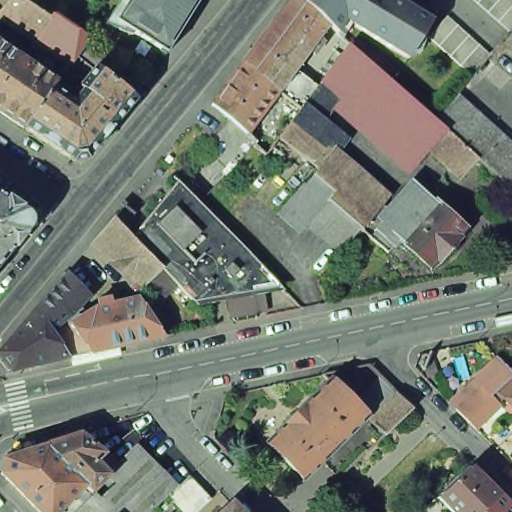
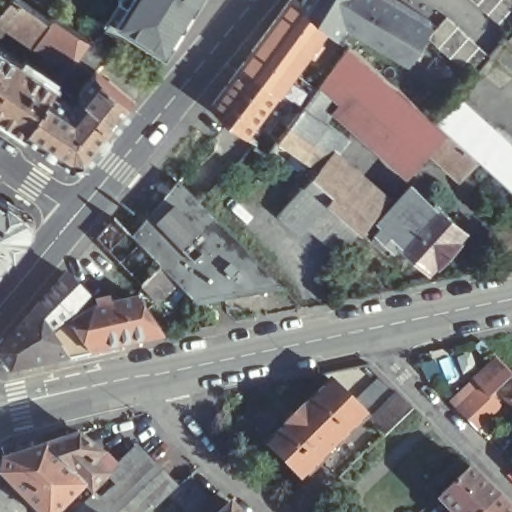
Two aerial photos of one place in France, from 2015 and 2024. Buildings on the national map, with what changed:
unchanged [(14,0),(41,19),(27,37),(26,39),(25,39),(2,22),(1,25),(0,24),(0,0),(14,0)]
unchanged [(174,36),(167,48),(115,16),(125,0),(197,0),(186,17),(174,36)]
unchanged [(277,209),(303,180),(304,180),(305,179),(318,165),(278,133),(298,106),(300,104),(278,87),(255,119),(275,136),(266,149),(254,139),(255,137),(247,129),(246,129),(229,114),(212,100),(242,58),(285,0),(305,0),(328,20),(319,34),(324,36),(314,50),(309,46),(295,65),(317,81),(324,71),(349,39),(435,116),(457,91),(474,106),(487,118),(512,141),(512,184),(477,152),(460,172),(435,150),(412,179),(415,183),(392,210),(415,182),(432,197),(434,195),(467,225),(431,263),(399,235),(389,247),(371,234),(360,225),(340,249),(329,239),(318,230),(307,220),(300,229),(277,209)]
unchanged [(432,15),(408,54),(345,15),(337,29),(329,21),(328,20),(305,0),(406,0),(411,3),(432,15)]
unchanged [(477,3),(474,0),(512,0),(512,27),(509,31),(498,22),(487,12),(477,3)]
unchanged [(460,60),(450,51),(439,41),(429,31),(447,11),(457,20),(469,30),(479,40),(490,50),(470,70),(460,60)]
unchanged [(42,88),(64,103),(72,90),(69,87),(84,70),(65,55),(61,60),(60,60),(27,38),(27,37),(41,19),(44,15),(67,30),(77,37),(75,39),(97,56),(87,68),(125,100),(77,157),(62,160),(15,128),(32,103),(42,88)]
unchanged [(512,32),(512,34),(511,33),(512,32)]
unchanged [(0,74),(0,51),(10,59),(0,74)]
unchanged [(0,118),(0,74),(10,59),(45,82),(42,88),(32,103),(15,128),(0,118)]
unchanged [(142,286),(131,275),(120,264),(109,252),(96,239),(114,217),(129,234),(132,236),(178,181),(199,202),(240,244),(245,249),(281,287),(194,302),(175,283),(157,301),(142,286)]
unchanged [(26,208),(29,223),(0,257),(0,190),(26,208)]
unchanged [(94,296),(77,315),(55,331),(60,337),(74,358),(17,371),(2,353),(72,273),(94,296)]
unchanged [(72,328),(71,327),(77,323),(102,308),(104,307),(102,301),(115,298),(117,305),(144,298),(169,337),(74,358),(60,337),(72,328)]
unchanged [(505,407),(509,404),(502,397),(497,403),(500,405),(475,428),(455,409),(480,386),(474,380),(498,358),(499,357),(504,363),(512,371),(512,412),(511,413),(505,407)]
unchanged [(366,411),(367,410),(332,375),(330,376),(322,370),(370,360),(383,373),(399,389),(414,403),(385,431),(370,416),(370,415),(366,411)]
unchanged [(295,465),(268,437),(330,376),(332,375),(367,410),(366,411),(321,455),(304,473),(295,465)]
unchanged [(80,433),(105,454),(97,460),(99,462),(110,473),(110,474),(109,476),(94,490),(92,492),(85,486),(87,485),(84,482),(65,463),(45,445),(80,433)]
unchanged [(1,473),(4,458),(45,445),(65,463),(84,482),(87,485),(85,486),(60,512),(40,512),(1,473)]
unchanged [(198,512),(184,512),(179,507),(168,496),(157,507),(155,509),(151,512),(80,512),(97,494),(104,500),(117,484),(112,480),(109,476),(110,474),(110,473),(137,446),(177,486),(189,475),(200,487),(212,498),(198,512)]
unchanged [(441,493),(450,485),(470,465),(499,495),(481,512),(452,512),(437,496),(441,493)]
unchanged [(499,495),(512,508),(512,512),(481,512),(499,495)]
unchanged [(232,504),(240,512),(224,512),(232,504)]

